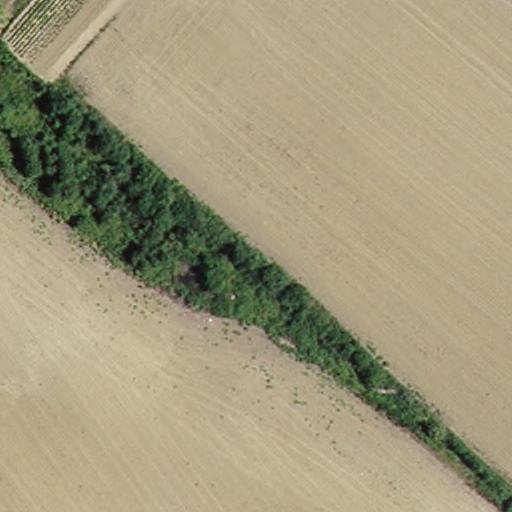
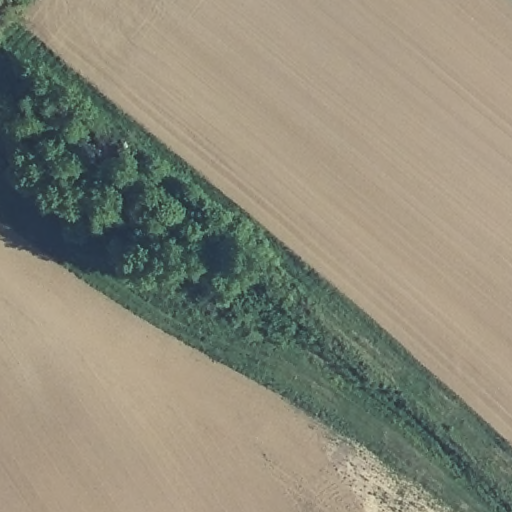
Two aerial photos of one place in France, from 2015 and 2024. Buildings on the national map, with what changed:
[]

